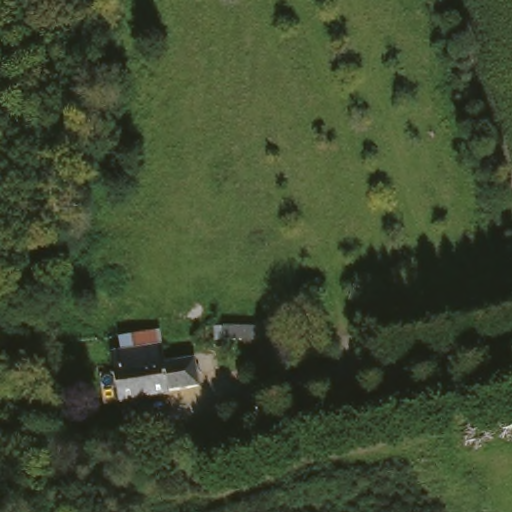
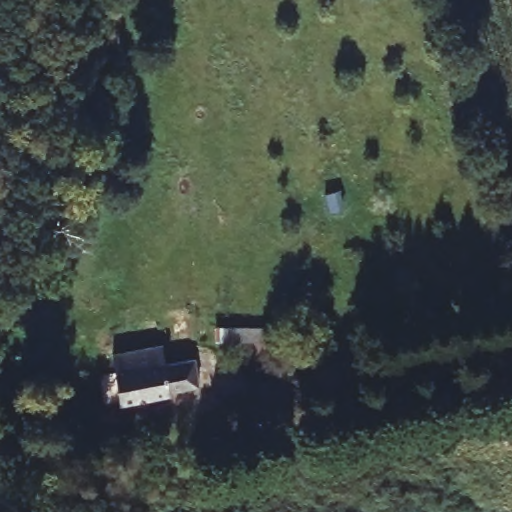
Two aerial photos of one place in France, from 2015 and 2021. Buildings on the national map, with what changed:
unchanged [(264,320),(267,337),(220,346),(216,327),(264,320)]
unchanged [(199,385),(172,389),(118,399),(118,396),(99,399),(94,372),(112,369),(108,349),(136,343),(152,340),(163,338),(166,358),(192,353),(199,385)]

